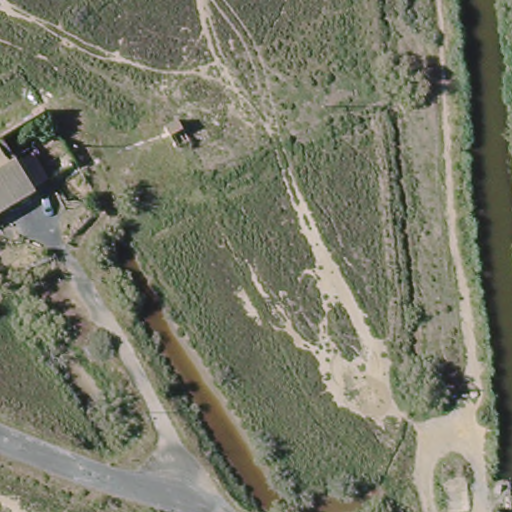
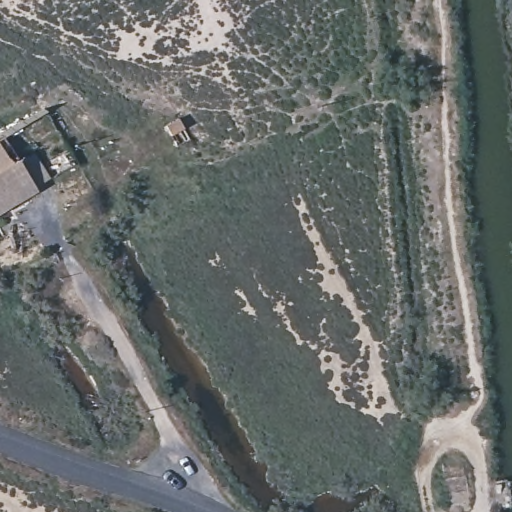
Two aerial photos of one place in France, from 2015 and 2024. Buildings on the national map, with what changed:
unchanged [(34,190),(0,211),(0,135),(1,135),(34,190)]

